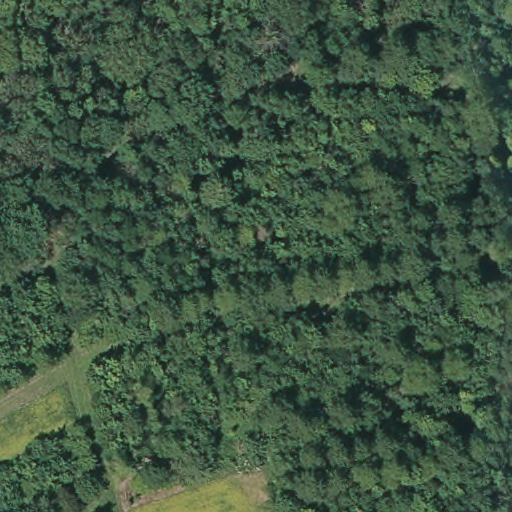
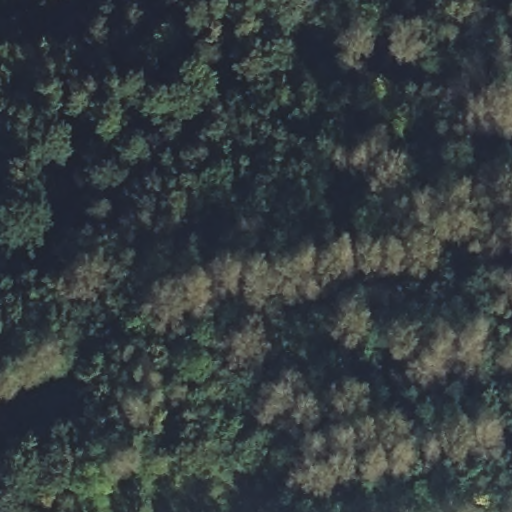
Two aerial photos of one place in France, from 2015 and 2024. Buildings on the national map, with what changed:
unchanged [(86,512),(55,512),(82,501),(86,512)]

